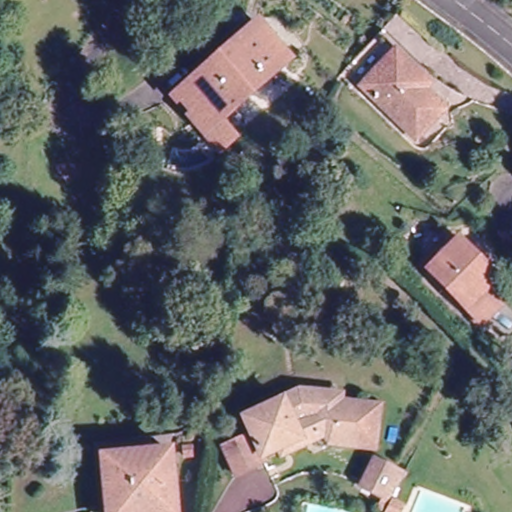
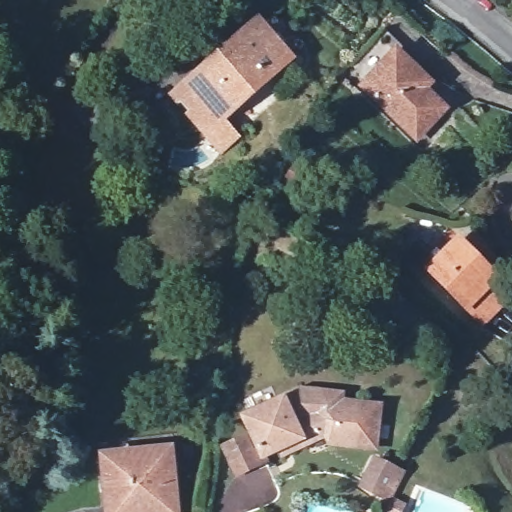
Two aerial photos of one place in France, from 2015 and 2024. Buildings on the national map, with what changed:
unchanged [(236,110),(246,129),(223,153),(168,97),(262,12),(295,58),(236,110)]
unchanged [(454,116),(429,145),(378,101),(381,98),(358,80),(384,49),(389,42),(435,80),(430,86),(426,92),(454,116)]
unchanged [(462,245),(494,282),(489,287),(504,303),(482,323),(433,272),(462,245)]
unchanged [(316,386),(345,387),(344,399),(384,400),(377,455),(313,445),(280,460),(280,452),(264,460),(250,436),(240,418),(284,394),(316,386)]
unchanged [(264,460),(232,482),(215,454),(250,436),(264,460)]
unchanged [(179,512),(102,512),(99,454),(174,447),(179,512)]
unchanged [(388,471),(404,481),(392,505),(362,491),(371,475),(383,481),(388,471)]
unchanged [(389,512),(392,506),(392,505),(404,511),(403,512),(389,512)]

